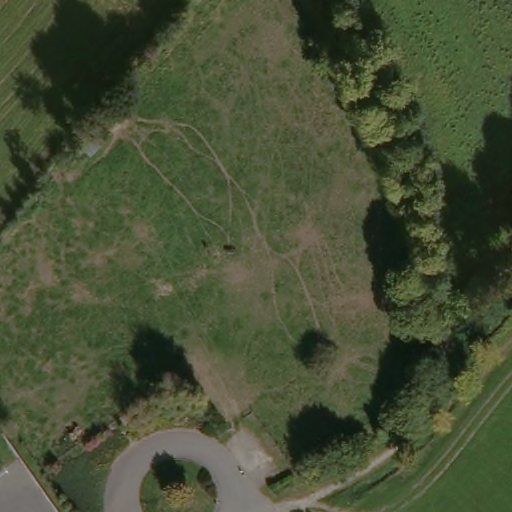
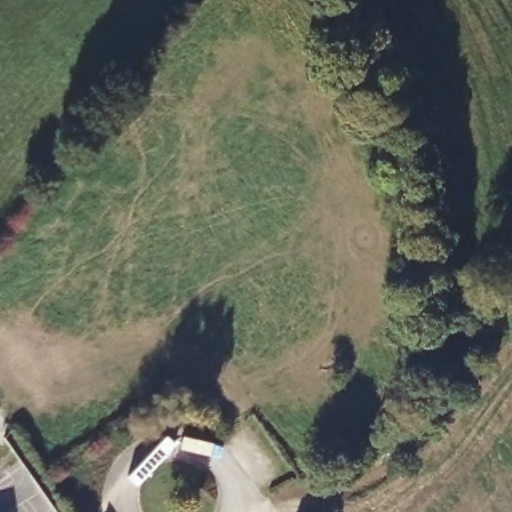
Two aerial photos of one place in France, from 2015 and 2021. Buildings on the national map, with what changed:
unchanged [(93,153),(88,150),(58,185),(44,175),(77,137),(99,117),(113,128),(93,153)]

